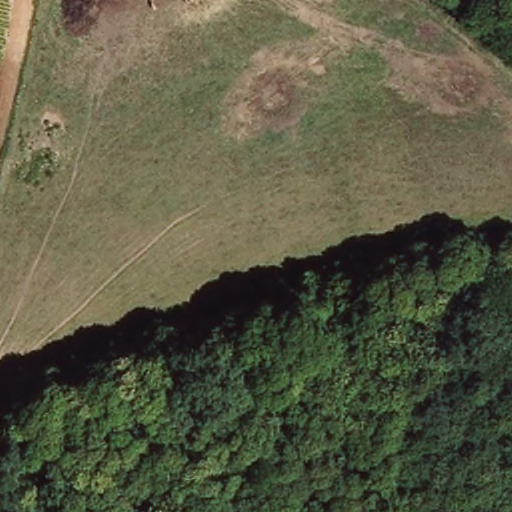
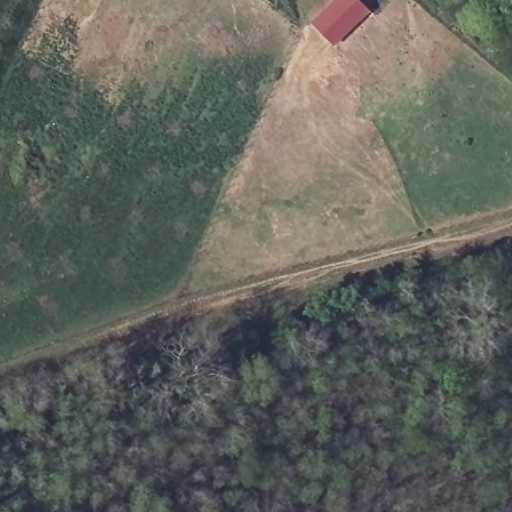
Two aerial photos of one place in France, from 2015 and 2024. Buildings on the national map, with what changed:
new [(335,46),(312,21),(333,0),(361,0),(372,10),(335,46)]

